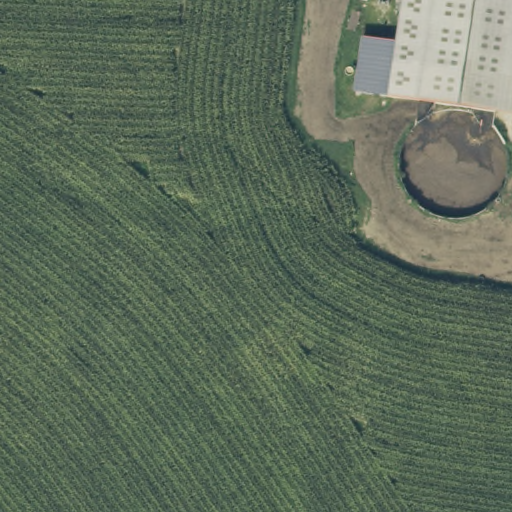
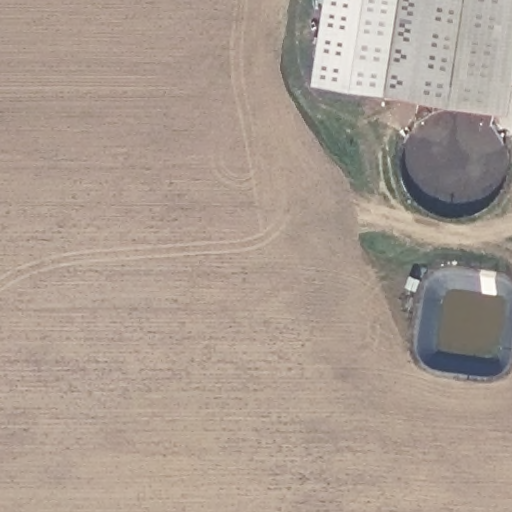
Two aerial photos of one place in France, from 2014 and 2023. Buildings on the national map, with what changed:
new [(361,37),(352,93),(316,86),(329,0),(404,0),(398,43),(361,37)]
unchanged [(404,0),(512,0),(500,86),(394,71),(404,0)]
unchanged [(512,0),(512,87),(500,86),(512,0)]
unchanged [(361,37),(398,43),(394,71),(500,86),(512,87),(512,115),(352,93),(361,37)]

